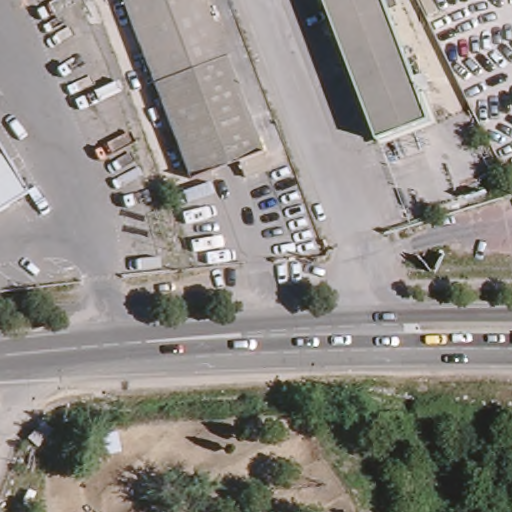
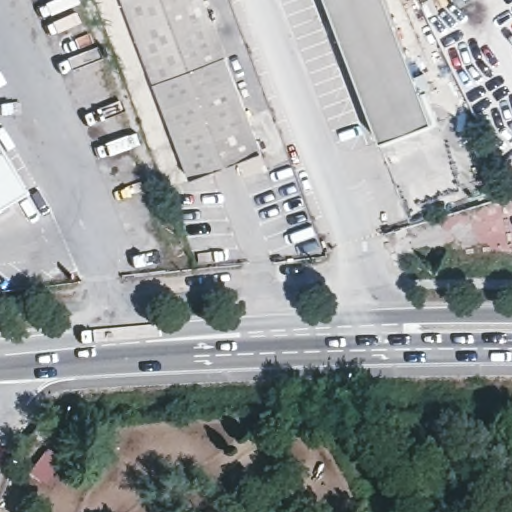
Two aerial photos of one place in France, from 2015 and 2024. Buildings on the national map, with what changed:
unchanged [(267,161),(246,169),(240,154),(187,175),(119,0),(204,0),(267,161)]
unchanged [(432,116),(377,138),(324,0),(388,0),(432,116)]
unchanged [(30,191),(12,202),(0,209),(0,142),(30,191)]

